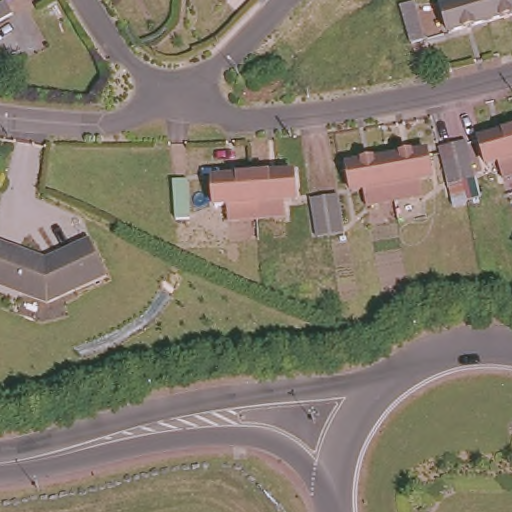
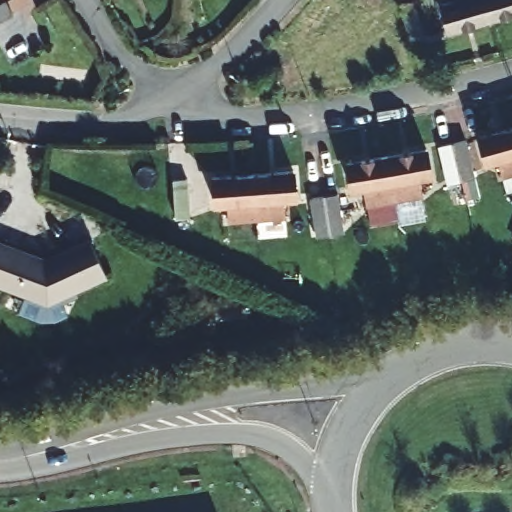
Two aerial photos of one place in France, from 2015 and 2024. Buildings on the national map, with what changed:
unchanged [(409,41),(398,4),(411,0),(422,37),(409,41)]
unchanged [(444,10),(456,6),(454,0),(485,0),(492,25),(452,35),(444,10)]
unchanged [(485,0),(512,0),(512,19),(492,25),(485,0)]
unchanged [(12,14),(0,20),(0,4),(5,1),(12,14)]
unchanged [(502,150),(490,154),(483,129),(512,121),(512,165),(507,166),(502,150)]
unchanged [(437,148),(452,145),(464,142),(473,181),(460,184),(446,186),(437,148)]
unchanged [(421,191),(393,195),(386,152),(424,145),(430,172),(417,174),(421,191)]
unchanged [(393,195),(365,200),(362,184),(351,185),(346,159),(386,152),(393,195)]
unchanged [(282,207),(254,209),(252,165),(290,162),(293,189),(281,190),(282,207)]
unchanged [(226,210),(224,194),(214,194),(211,168),(252,165),(254,209),(226,210)]
unchanged [(188,219),(174,220),(171,181),(185,180),(188,219)]
unchanged [(308,196),(320,195),(336,192),(342,232),(326,234),(314,235),(308,196)]
unchanged [(104,273),(45,300),(0,283),(0,239),(44,256),(87,236),(104,273)]

